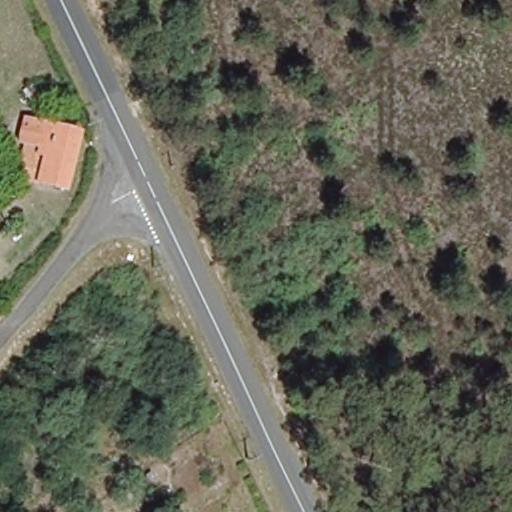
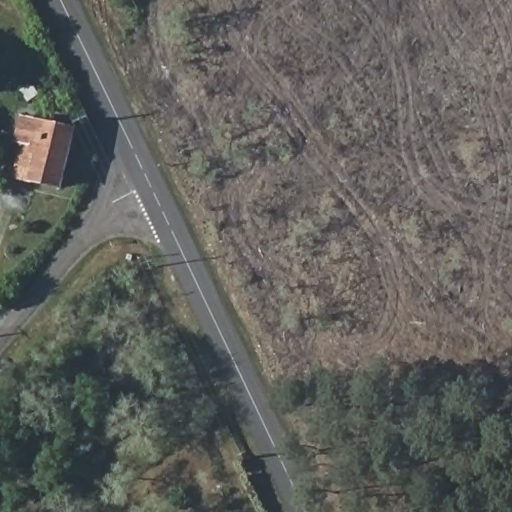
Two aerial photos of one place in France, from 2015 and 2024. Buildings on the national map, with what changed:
unchanged [(39,176),(42,162),(25,156),(29,144),(19,140),(25,116),(84,130),(68,182),(39,176)]

